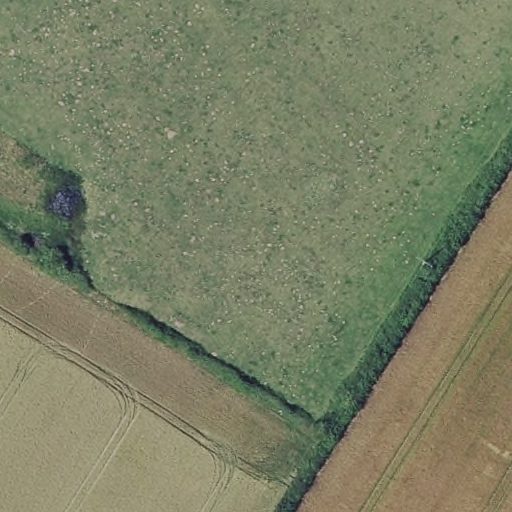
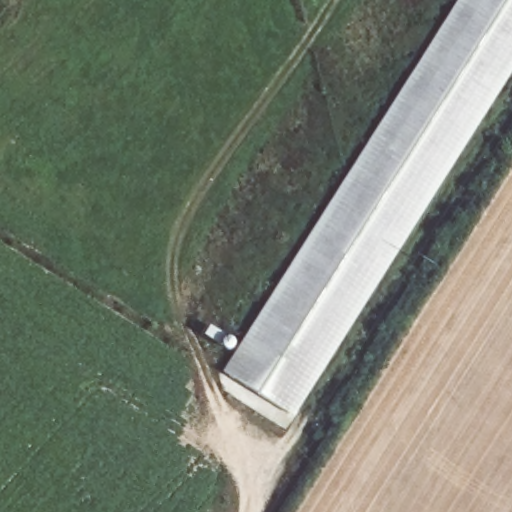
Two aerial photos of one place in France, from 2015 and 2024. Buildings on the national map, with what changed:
new [(512,68),(296,414),(221,371),(452,0),(512,0),(512,68)]

